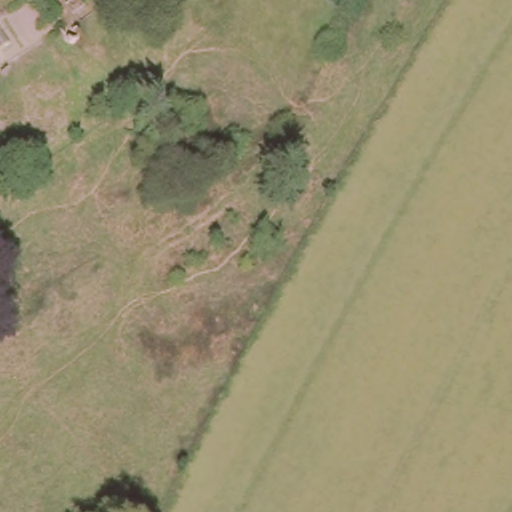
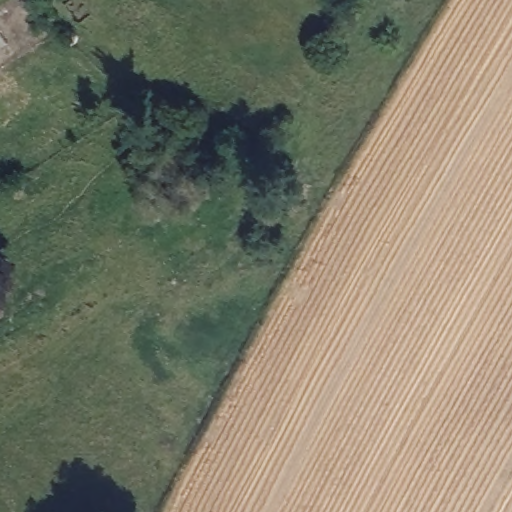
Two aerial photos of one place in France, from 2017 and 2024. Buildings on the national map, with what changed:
unchanged [(49,0),(72,0),(82,13),(67,24),(49,0)]
unchanged [(56,35),(59,29),(64,27),(68,30),(69,33),(67,38),(62,41),(60,39),(56,35)]

